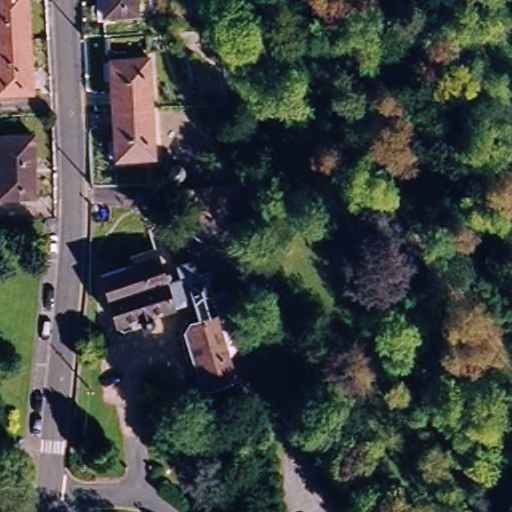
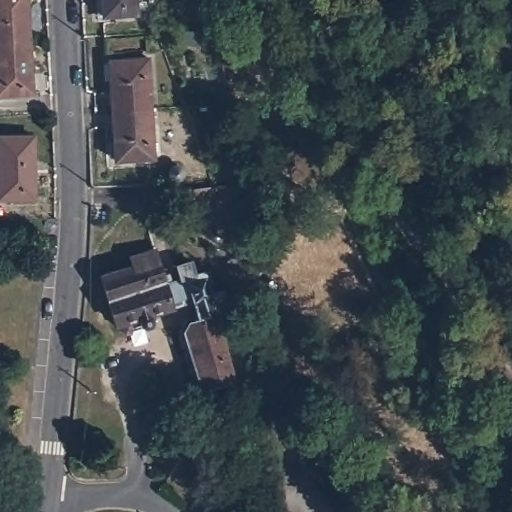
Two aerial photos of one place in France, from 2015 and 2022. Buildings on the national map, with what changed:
unchanged [(0,0),(26,0),(28,38),(0,39),(0,0)]
unchanged [(103,15),(102,0),(136,0),(136,15),(103,15)]
unchanged [(30,91),(0,92),(0,39),(28,38),(30,91)]
unchanged [(110,110),(107,60),(147,59),(150,108),(110,110)]
unchanged [(114,161),(110,110),(150,108),(152,160),(114,161)]
unchanged [(33,201),(0,201),(0,141),(32,141),(33,201)]
unchanged [(188,165),(188,168),(188,172),(187,175),(184,177),(180,178),(176,177),(173,175),(172,171),(172,168),(173,165),(175,163),(177,161),(181,161),(185,162),(187,164),(188,165)]
unchanged [(223,368),(226,380),(223,386),(205,392),(196,387),(174,308),(152,316),(154,320),(151,327),(143,330),(139,326),(122,331),(121,326),(115,327),(101,277),(124,271),(121,261),(153,251),(156,261),(159,260),(165,282),(180,277),(175,265),(192,261),(200,280),(206,278),(211,299),(225,294),(229,310),(210,315),(226,367),(223,368)]
unchanged [(7,512),(0,512),(0,502),(5,501),(7,512)]

